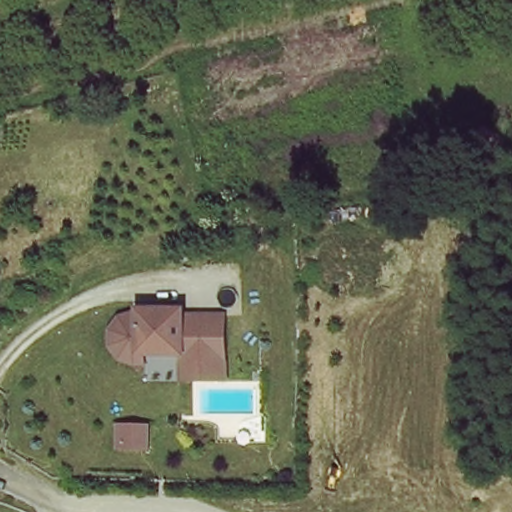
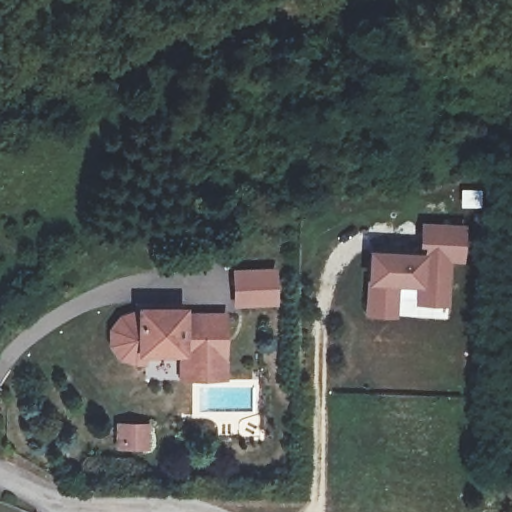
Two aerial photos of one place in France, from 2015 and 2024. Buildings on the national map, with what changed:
new [(421,221),(465,223),(463,264),(449,264),(448,306),(414,305),(414,287),(397,287),(397,316),(366,316),(367,285),(369,249),(417,251),(421,221)]
new [(278,267),(279,306),(233,308),(232,267),(278,267)]
unchanged [(129,364),(118,360),(108,347),(108,333),(113,333),(118,318),(136,315),(136,311),(179,311),(179,317),(219,317),(218,353),(178,353),(139,353),(139,364),(129,364)]
unchanged [(218,378),(176,378),(178,353),(218,353),(218,378)]
unchanged [(145,421),(146,450),(113,448),(112,421),(145,421)]

